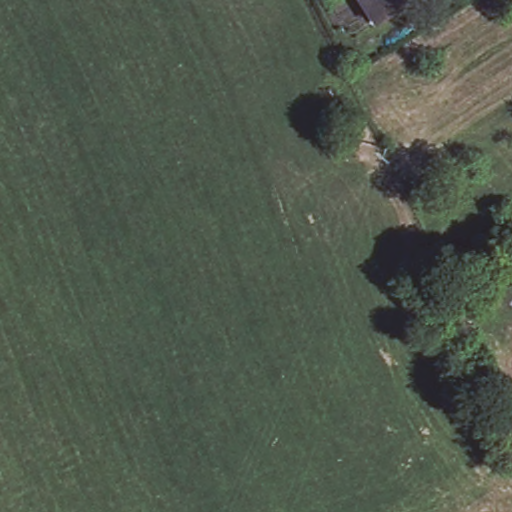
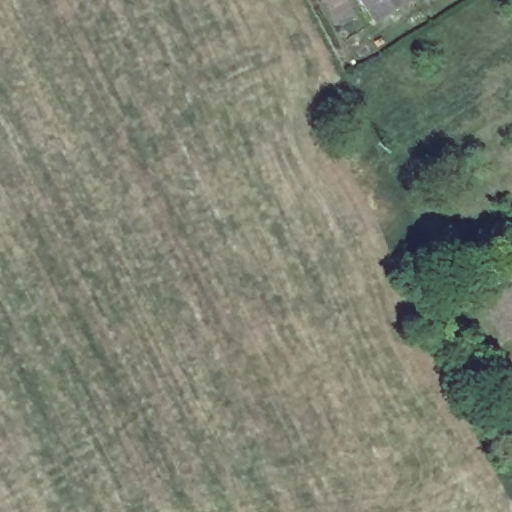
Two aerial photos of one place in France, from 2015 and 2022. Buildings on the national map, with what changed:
unchanged [(368,0),(413,0),(379,20),(368,0)]
unchanged [(512,250),(512,276),(509,277),(512,283),(512,289),(492,297),(486,285),(474,291),(474,270),(512,250)]

